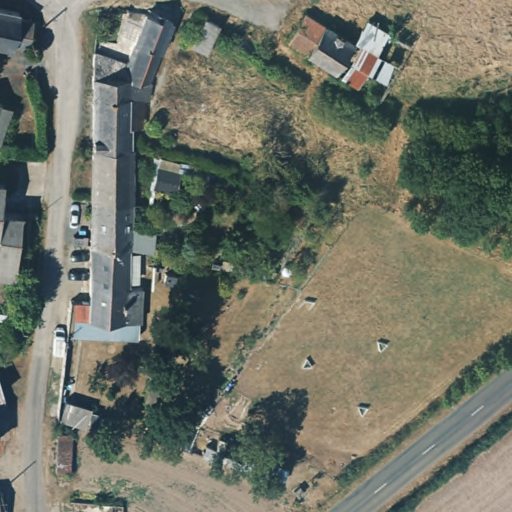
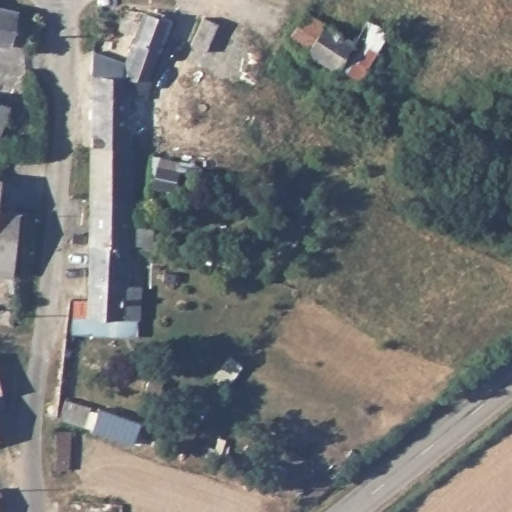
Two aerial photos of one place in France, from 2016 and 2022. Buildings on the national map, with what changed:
unchanged [(19,15),(17,22),(32,26),(27,51),(15,49),(13,56),(0,53),(0,11),(19,15)]
unchanged [(146,14),(173,22),(168,36),(151,81),(127,70),(146,14)]
unchanged [(369,16),(391,28),(377,53),(360,80),(291,42),(307,14),(354,40),(369,16)]
unchanged [(201,15),(217,22),(202,48),(186,40),(201,15)]
unchanged [(125,79),(127,70),(151,81),(146,96),(129,95),(126,127),(131,130),(130,150),(92,148),(92,77),(125,79)]
unchanged [(11,106),(0,138),(0,101),(11,106)]
unchanged [(130,150),(130,205),(91,202),(92,148),(130,150)]
unchanged [(2,181),(0,210),(0,181),(2,181)]
unchanged [(130,205),(130,251),(90,250),(91,202),(130,205)]
unchanged [(20,213),(14,277),(0,276),(0,210),(20,213)]
unchanged [(130,251),(129,288),(141,289),(140,322),(89,320),(90,250),(130,251)]
unchanged [(0,389),(6,407),(0,409),(0,389)]
unchanged [(71,427),(70,465),(55,465),(55,426),(71,427)]

